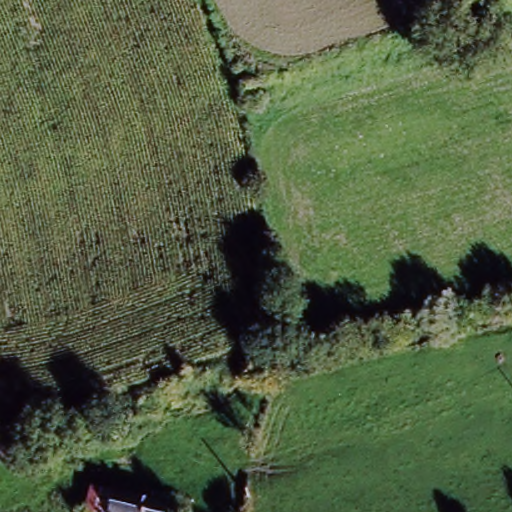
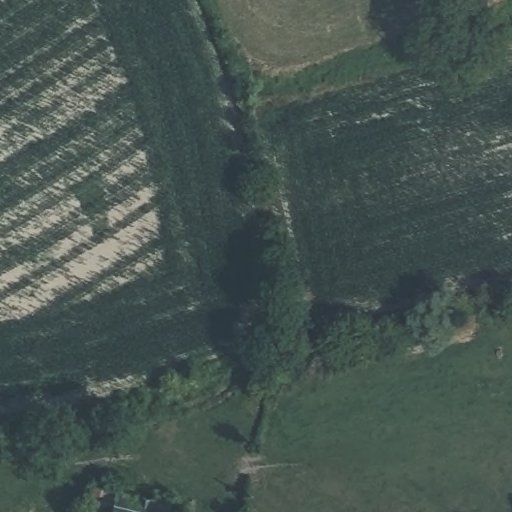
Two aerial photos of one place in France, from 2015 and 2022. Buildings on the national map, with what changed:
unchanged [(168,512),(107,512),(111,497),(168,512)]

